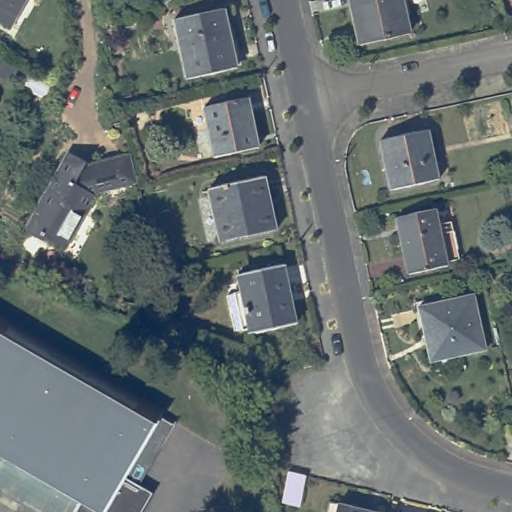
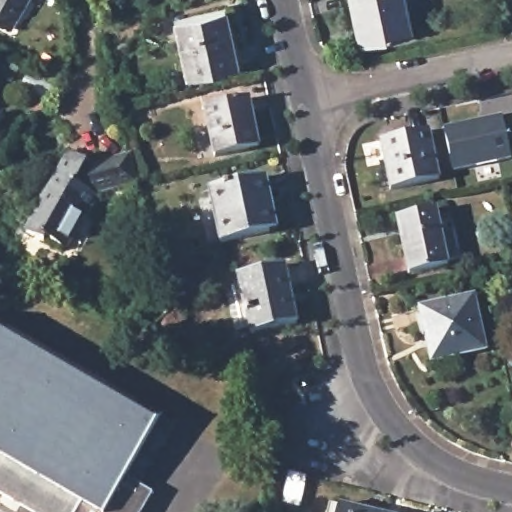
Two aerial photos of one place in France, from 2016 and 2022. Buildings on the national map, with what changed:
unchanged [(0,21),(0,0),(27,0),(11,27),(0,21)]
unchanged [(349,0),(403,0),(411,33),(358,44),(349,0)]
unchanged [(175,21),(224,10),(236,68),(188,79),(175,21)]
unchanged [(55,92),(48,105),(22,90),(29,77),(55,92)]
unchanged [(204,108),(247,99),(257,148),(215,157),(204,108)]
new [(502,114),(512,158),(453,170),(444,126),(502,114)]
unchanged [(379,139),(429,129),(439,177),(390,189),(379,139)]
unchanged [(42,235),(40,239),(23,230),(67,149),(83,158),(80,163),(127,153),(133,181),(134,183),(91,195),(90,196),(91,197),(81,213),(80,212),(61,246),(42,235)]
unchanged [(211,192),(265,180),(276,234),(222,245),(211,192)]
unchanged [(393,223),(431,214),(434,228),(446,225),(454,262),(443,264),(444,269),(406,278),(393,223)]
unchanged [(254,328),(239,332),(231,296),(246,293),(243,278),(288,268),(301,326),(255,335),(254,328)]
unchanged [(418,306),(471,295),(483,350),(430,361),(418,306)]
unchanged [(142,512),(48,512),(0,484),(0,301),(0,300),(171,401),(129,472),(143,480),(156,488),(142,512)]
unchanged [(171,401),(185,410),(143,480),(129,472),(171,401)]
unchanged [(375,512),(331,512),(333,502),(375,512)]

